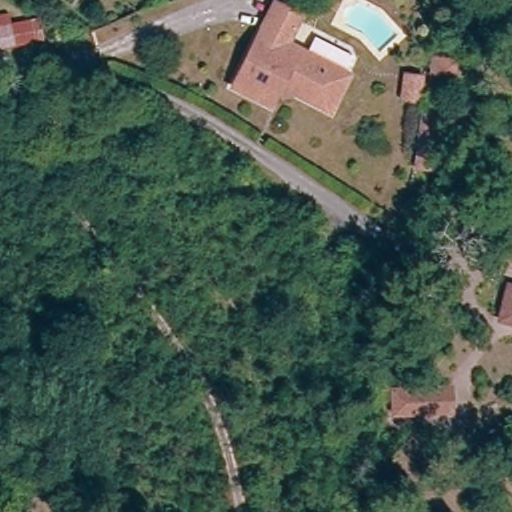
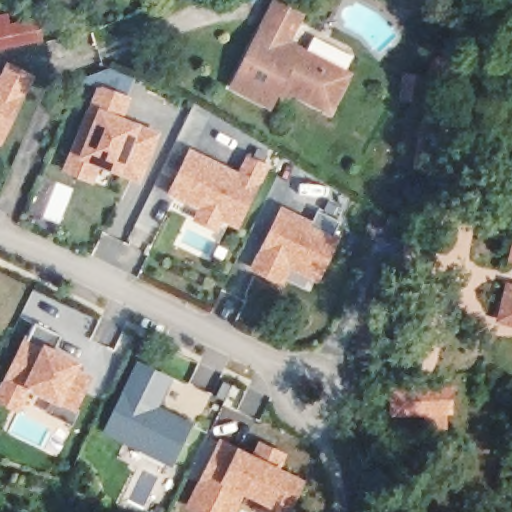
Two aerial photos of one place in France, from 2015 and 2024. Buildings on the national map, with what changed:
unchanged [(261,110),(224,91),(267,4),(294,16),(282,44),(343,74),(330,100),(310,108),(272,89),(261,110)]
unchanged [(6,19),(6,27),(55,21),(58,47),(0,60),(0,20),(6,19)]
new [(7,61),(38,76),(1,147),(0,147),(0,76),(7,61)]
unchanged [(400,106),(403,83),(419,85),(416,108),(400,106)]
new [(91,101),(102,85),(135,98),(125,118),(143,126),(162,134),(141,185),(120,175),(101,168),(94,184),(62,170),(91,101)]
unchanged [(417,114),(449,117),(447,136),(443,177),(410,172),(415,131),(417,114)]
new [(239,171),(246,155),(271,166),(241,230),(223,223),(216,233),(192,221),(198,209),(167,195),(189,150),(239,171)]
new [(251,270),(282,205),(312,220),(318,209),(342,222),(336,233),(341,236),(320,282),(291,268),(282,284),(251,270)]
unchanged [(512,264),(510,264),(512,256),(512,264)]
unchanged [(508,293),(512,293),(512,330),(499,327),(508,293)]
new [(71,424),(47,411),(51,403),(29,391),(19,412),(0,402),(0,386),(26,338),(35,322),(63,335),(55,349),(83,362),(80,367),(94,374),(77,410),(71,424)]
new [(174,377),(161,406),(195,422),(175,467),(102,434),(138,361),(174,377)]
unchanged [(448,395),(449,417),(440,418),(393,419),(392,397),(439,395),(448,395)]
new [(260,441),(288,456),(282,466),(306,480),(290,512),(262,512),(259,511),(262,505),(244,496),(236,512),(197,512),(186,506),(221,439),(252,455),(260,441)]

